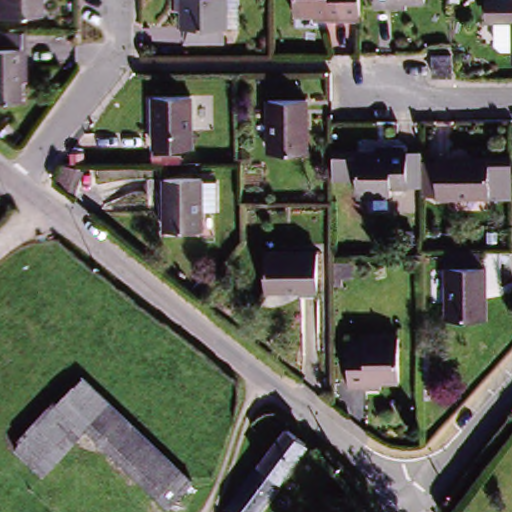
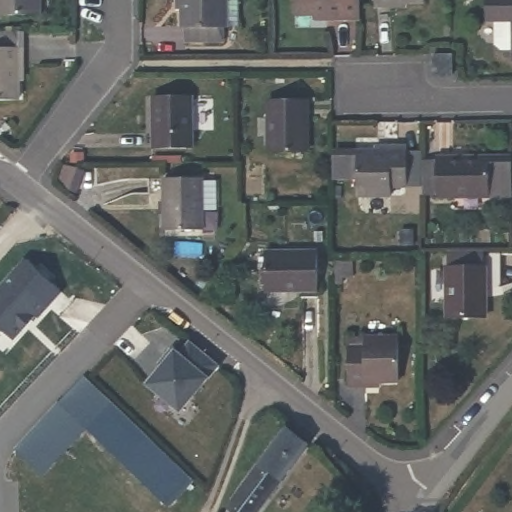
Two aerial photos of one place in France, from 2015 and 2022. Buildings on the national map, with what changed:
unchanged [(38,14),(0,14),(0,0),(38,0),(38,14)]
unchanged [(227,31),(172,31),(172,12),(167,12),(167,2),(168,0),(228,0),(227,31)]
unchanged [(313,14),(295,15),(295,0),(361,0),(361,20),(324,20),(313,20),(313,14)]
unchanged [(400,12),(381,12),(381,0),(430,0),(430,6),(411,7),(410,12),(400,12)]
unchanged [(508,47),(498,42),(498,16),(491,16),(491,0),(512,0),(512,47),(508,47)]
unchanged [(13,79),(14,99),(0,99),(0,27),(17,27),(18,47),(17,79),(13,79)]
unchanged [(452,56),(452,75),(433,75),(433,56),(452,56)]
unchanged [(191,95),(192,147),(154,148),(153,96),(191,95)]
unchanged [(306,100),(306,151),(269,152),(269,100),(306,100)]
unchanged [(397,185),(382,185),(382,195),(349,195),(348,152),(366,152),(366,146),(376,146),(396,146),(397,185)]
unchanged [(435,155),(447,155),(447,152),(500,152),(500,154),(512,154),(512,191),(500,191),(447,191),(447,189),(434,189),(435,155)]
unchanged [(75,167),(68,187),(60,182),(66,167),(75,167)]
unchanged [(173,178),(201,177),(202,228),(167,230),(165,194),(150,195),(149,180),(173,178)]
unchanged [(318,247),(319,284),(266,285),(265,248),(318,247)]
unchanged [(450,256),(483,255),(484,270),(486,270),(486,323),(448,323),(448,270),(450,270),(450,256)]
new [(49,305),(38,317),(35,315),(13,340),(0,328),(0,289),(13,273),(49,305)]
new [(164,372),(160,369),(173,353),(181,360),(192,346),(220,368),(183,416),(150,390),(164,372)]
unchanged [(365,397),(345,397),(344,355),(344,347),(360,347),(393,346),(395,389),(375,390),(375,396),(365,397)]
unchanged [(195,481),(170,506),(86,428),(45,473),(17,447),(84,376),(195,481)]
unchanged [(234,498),(292,423),(312,440),(256,512),(230,512),(233,502),(234,498)]

